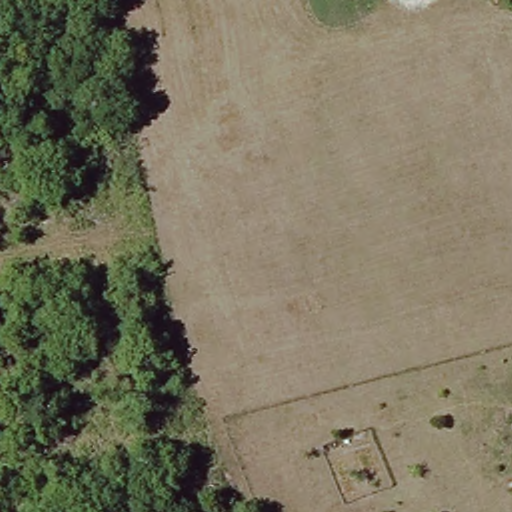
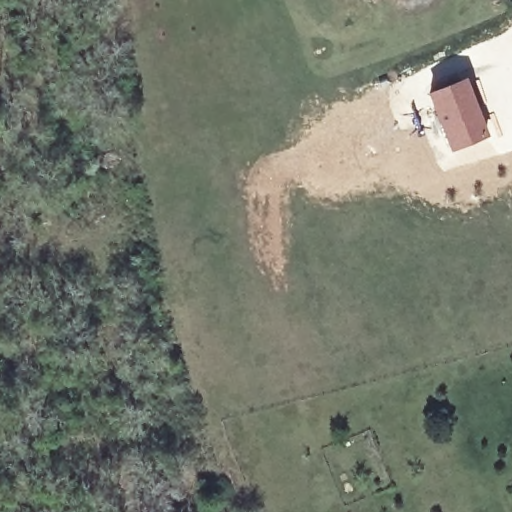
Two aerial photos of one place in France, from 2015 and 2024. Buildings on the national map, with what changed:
unchanged [(372,0),(377,0),(374,3),(372,0)]
new [(466,76),(489,136),(449,151),(426,93),(466,76)]

